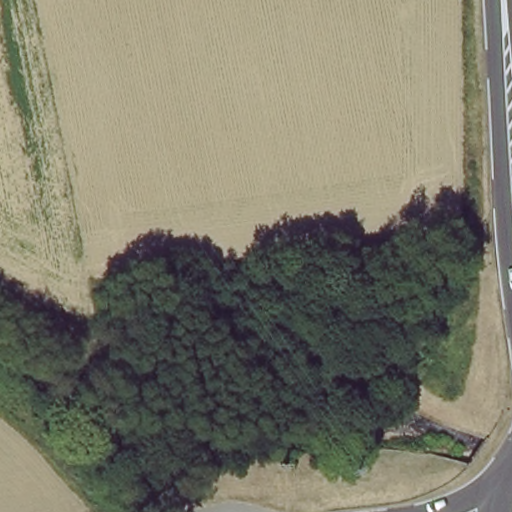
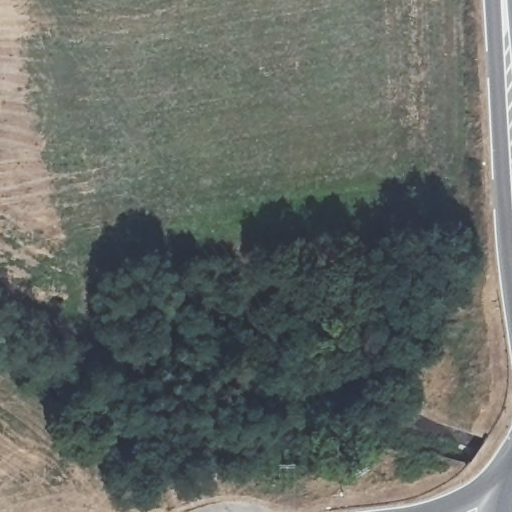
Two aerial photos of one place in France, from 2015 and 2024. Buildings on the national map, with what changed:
unchanged [(429,270),(450,267),(452,285),(431,288),(429,270)]

